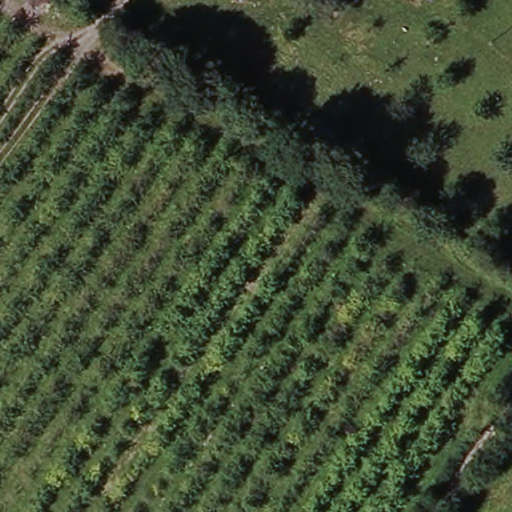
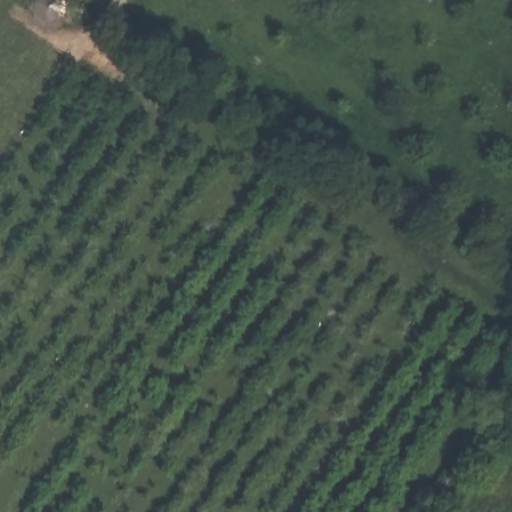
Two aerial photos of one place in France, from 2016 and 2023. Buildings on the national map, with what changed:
unchanged [(244,13),(227,0),(254,0),(244,13)]
unchanged [(428,5),(421,0),(432,0),(428,5)]

